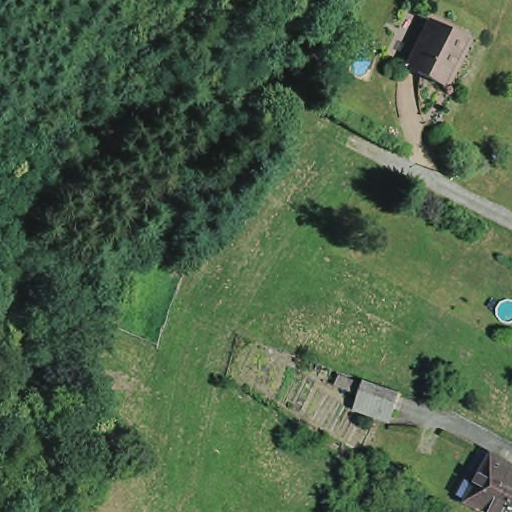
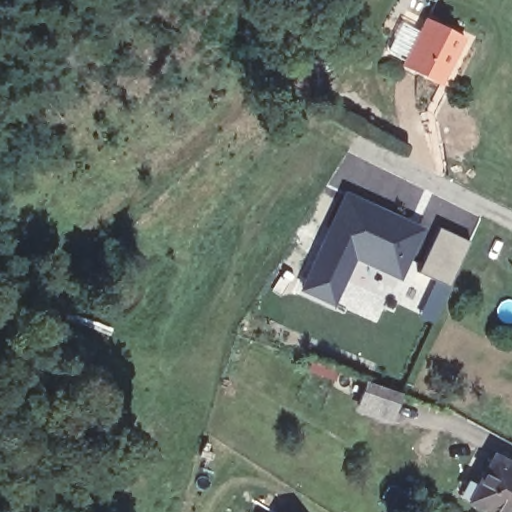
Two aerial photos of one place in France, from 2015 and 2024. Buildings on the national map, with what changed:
unchanged [(430,85),(392,66),(416,20),(453,39),(430,85)]
new [(346,196),(417,229),(419,234),(401,271),(382,262),(372,265),(354,256),(332,303),(302,290),(346,196)]
new [(438,227),(470,242),(449,288),(417,273),(438,227)]
unchanged [(359,403),(366,382),(400,393),(392,415),(359,403)]
unchanged [(474,510),(482,497),(477,494),(494,462),(512,472),(512,512),(478,512),(474,510)]

